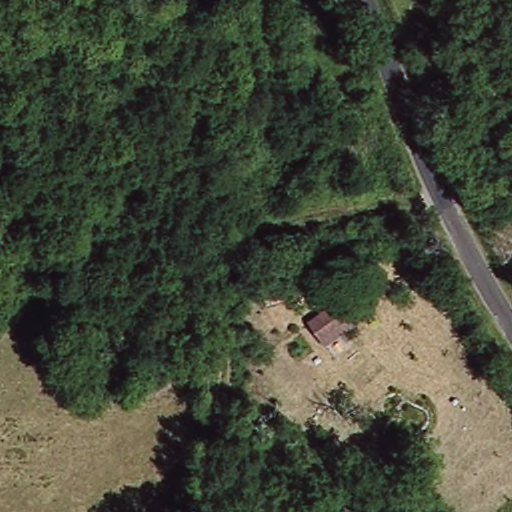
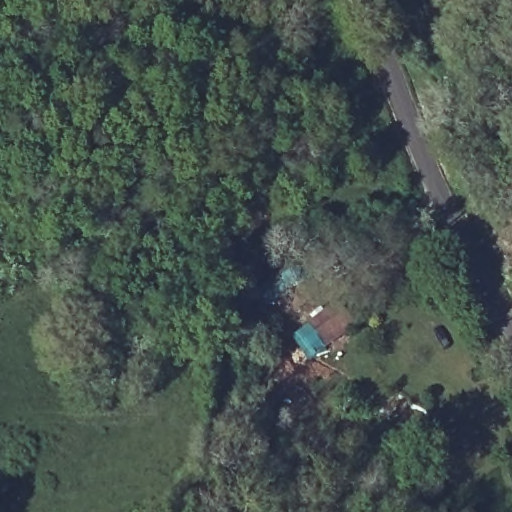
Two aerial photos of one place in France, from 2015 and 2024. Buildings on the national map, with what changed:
unchanged [(317,322),(345,303),(357,322),(329,341),(317,322)]

